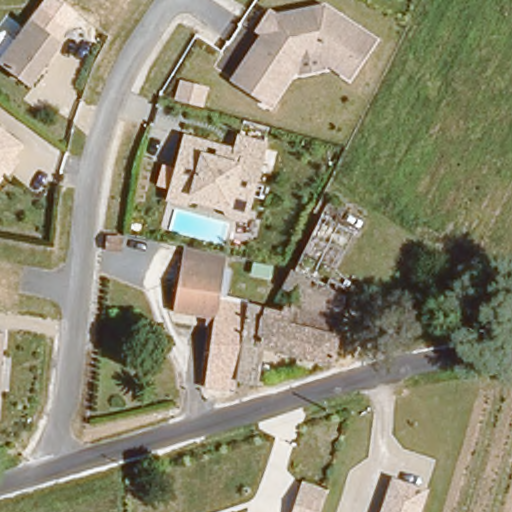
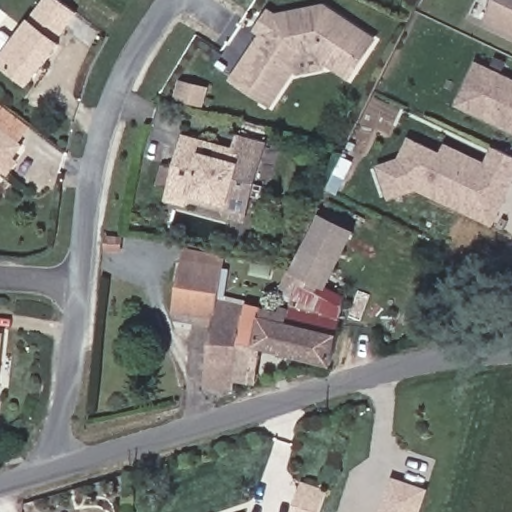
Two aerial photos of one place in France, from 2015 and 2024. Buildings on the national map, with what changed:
new [(483,23),(494,0),(512,0),(512,37),(483,23)]
unchanged [(377,40),(350,79),(328,66),(302,75),(295,72),(272,104),(232,77),(258,35),(254,32),(271,8),(277,12),(325,4),(377,40)]
unchanged [(58,40),(62,43),(31,84),(0,59),(0,58),(29,20),(41,6),(68,26),(58,40)]
new [(512,79),(512,129),(458,104),(477,62),(512,79)]
unchanged [(175,100),(181,76),(211,85),(204,107),(175,100)]
unchanged [(16,156),(19,160),(7,175),(2,173),(0,176),(0,127),(23,144),(16,156)]
unchanged [(239,132),(271,141),(248,222),(227,217),(225,211),(194,203),(187,207),(168,201),(184,134),(236,145),(239,132)]
new [(466,210),(445,200),(417,187),(391,197),(380,168),(401,160),(410,140),(442,156),(447,146),(487,165),(495,147),(512,156),(512,182),(511,185),(497,211),(492,223),(466,210)]
unchanged [(328,207),(356,227),(327,273),(291,266),(289,265),(328,207)]
unchanged [(202,378),(212,315),(168,309),(179,257),(222,265),(216,295),(247,299),(234,373),(232,380),(202,378)]
unchanged [(289,265),(291,266),(327,273),(345,283),(325,356),(258,350),(255,375),(234,373),(247,299),(287,305),(292,280),(285,280),(287,265),(289,265)]
unchanged [(0,351),(0,333),(2,333),(0,351)]
new [(428,489),(419,512),(379,512),(392,476),(428,489)]
unchanged [(317,512),(291,512),(301,482),(324,489),(317,512)]
demolished [(387,512),(382,512),(382,510),(387,512)]

